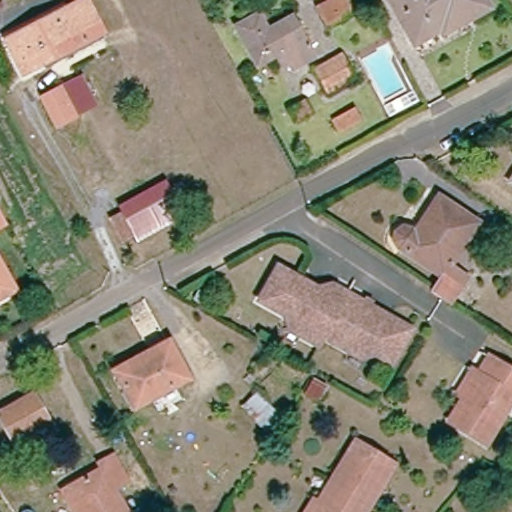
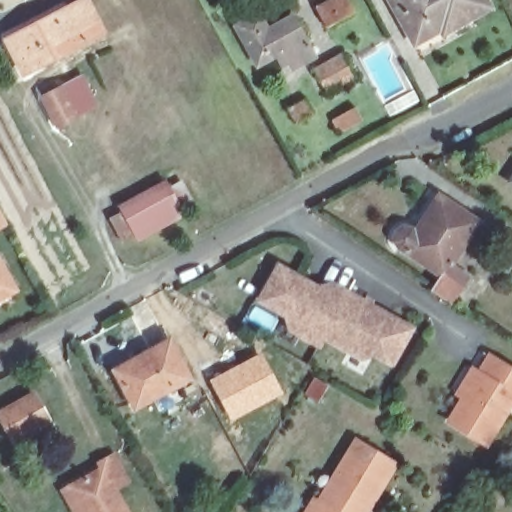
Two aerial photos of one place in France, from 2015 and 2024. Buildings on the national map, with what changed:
unchanged [(325,0),(344,0),(350,12),(320,27),(310,8),(325,0)]
unchanged [(410,40),(384,0),(477,0),(410,40)]
unchanged [(67,10),(69,15),(91,4),(105,33),(21,76),(5,43),(67,10)]
unchanged [(257,15),(268,35),(302,16),(313,37),(256,68),(233,28),(257,15)]
unchanged [(337,55),(350,80),(325,94),(311,70),(337,55)]
unchanged [(67,78),(83,104),(62,115),(47,88),(67,78)]
unchanged [(313,101),(320,115),(302,125),(295,111),(313,101)]
unchanged [(362,107),(370,122),(346,136),(338,121),(362,107)]
unchanged [(512,174),(512,187),(506,184),(512,174)]
unchanged [(187,215),(146,238),(140,227),(125,235),(114,215),(170,185),(187,215)]
unchanged [(438,278),(403,255),(395,250),(393,247),(393,243),(395,240),(398,236),(402,233),(406,232),(411,233),(414,232),(438,197),(478,222),(452,263),(470,274),(447,308),(427,296),(438,278)]
unchanged [(0,226),(0,218),(3,224),(0,226)]
unchanged [(319,335),(315,341),(288,327),(282,312),(254,296),(273,260),(322,287),(327,280),(344,290),(319,335)]
unchanged [(512,270),(512,281),(507,277),(512,270)]
unchanged [(0,291),(0,271),(9,286),(0,291)]
unchanged [(405,325),(385,361),(371,352),(358,357),(319,335),(344,290),(405,325)]
unchanged [(169,343),(189,380),(137,410),(115,375),(169,343)]
new [(261,351),(283,393),(231,421),(209,380),(261,351)]
unchanged [(484,443),(445,420),(459,398),(450,392),(467,368),(475,373),(488,354),(508,366),(512,369),(512,402),(484,443)]
unchanged [(0,413),(34,394),(52,426),(16,448),(0,420),(0,413)]
unchanged [(368,512),(311,512),(317,502),(321,505),(358,443),(396,466),(368,512)]
unchanged [(70,487),(76,483),(107,466),(104,460),(120,450),(134,477),(118,486),(132,512),(92,512),(90,508),(83,512),(82,512),(69,490),(70,487)]

